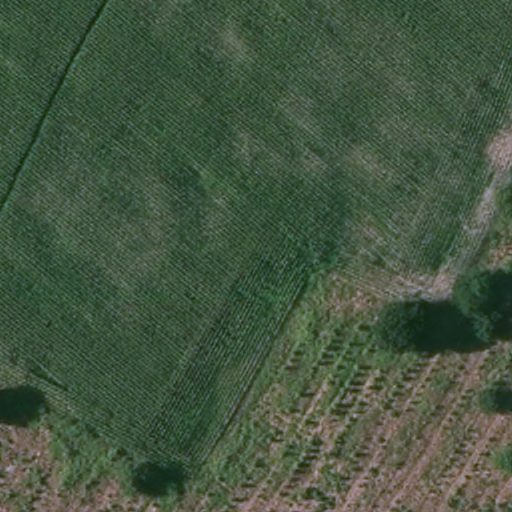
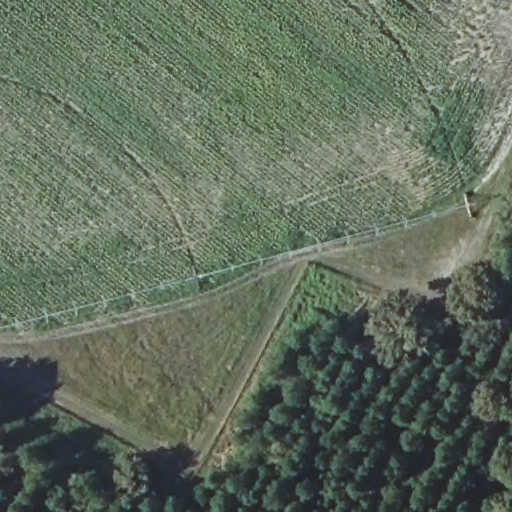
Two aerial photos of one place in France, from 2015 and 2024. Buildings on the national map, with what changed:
[]

